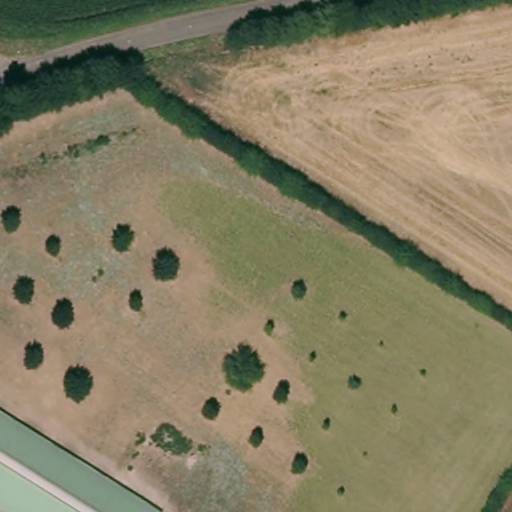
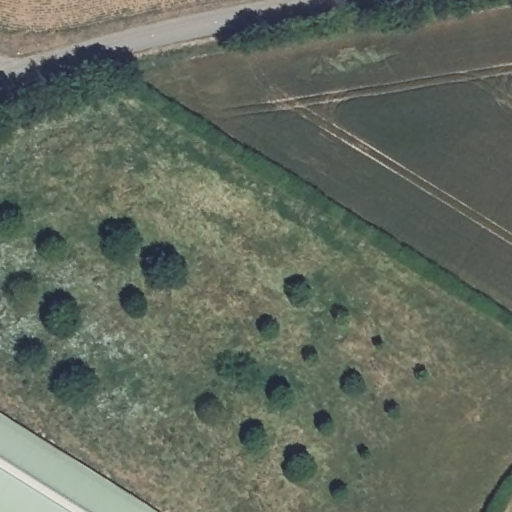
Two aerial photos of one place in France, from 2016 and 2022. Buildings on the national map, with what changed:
unchanged [(0,413),(161,512),(1,512),(0,511),(0,413)]

